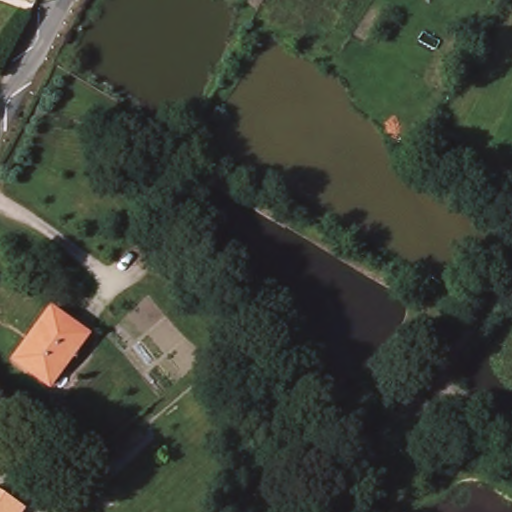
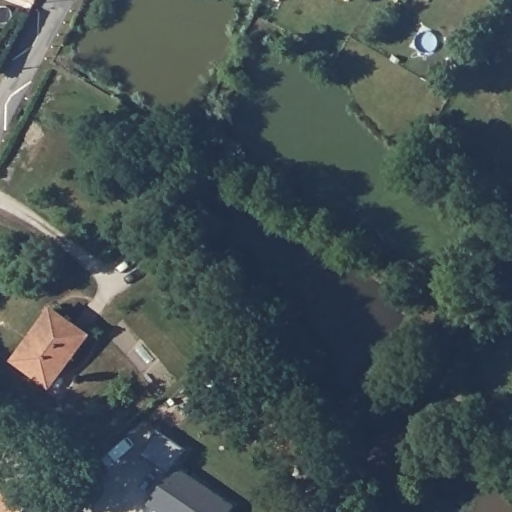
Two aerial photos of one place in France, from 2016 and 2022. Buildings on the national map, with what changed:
unchanged [(40,4),(29,0),(41,0),(40,4)]
unchanged [(55,385),(21,360),(57,309),(92,335),(55,385)]
unchanged [(438,354),(445,361),(429,379),(422,373),(438,354)]
new [(157,429),(187,449),(177,464),(235,505),(230,512),(159,512),(148,505),(168,471),(141,454),(157,429)]
unchanged [(0,512),(0,487),(31,508),(28,512),(0,512)]

